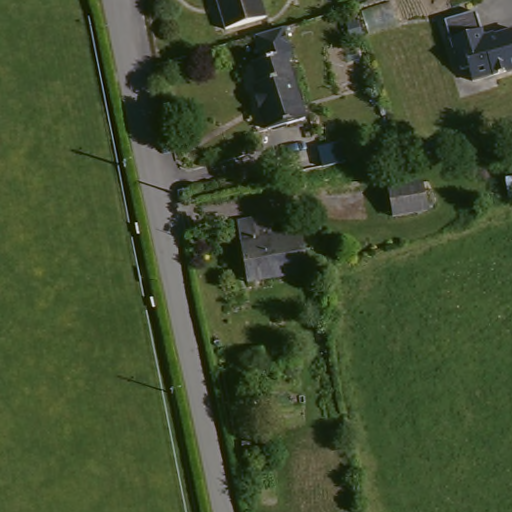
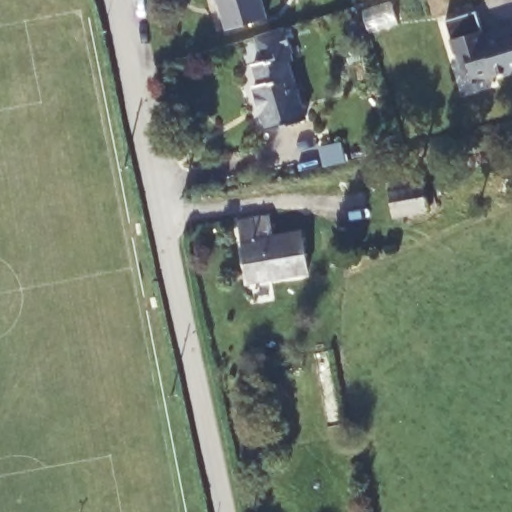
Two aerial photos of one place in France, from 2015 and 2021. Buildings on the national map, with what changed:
unchanged [(223,31),(213,0),(257,0),(263,19),(223,31)]
unchanged [(481,7),(488,32),(512,26),(512,64),(476,75),(472,61),(464,63),(460,47),(458,47),(450,16),(481,7)]
unchanged [(263,145),(248,101),(254,97),(249,80),(258,77),(252,56),(279,47),(286,70),(287,77),(282,78),(298,134),(263,145)]
unchanged [(506,202),(499,170),(512,166),(512,200),(506,202)]
unchanged [(379,192),(415,185),(421,213),(386,223),(379,192)]
unchanged [(231,224),(263,217),(268,235),(298,229),(307,272),(245,286),(231,224)]

